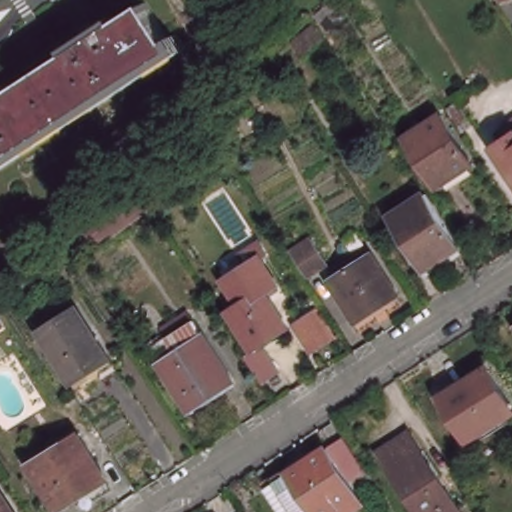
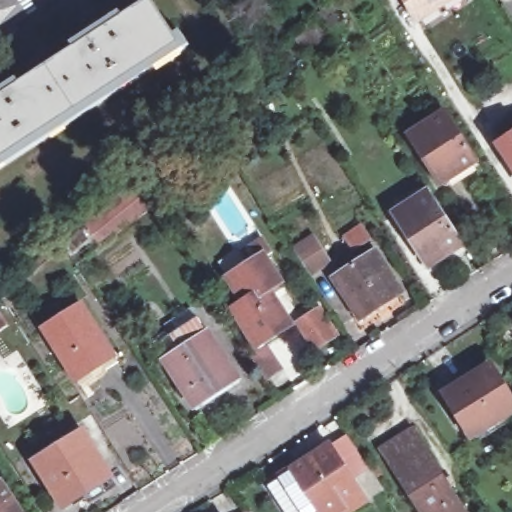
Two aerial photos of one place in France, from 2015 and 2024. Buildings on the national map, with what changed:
unchanged [(330,0),(337,0),(339,3),(324,13),(320,7),(330,0)]
new [(402,0),(456,0),(418,25),(402,0)]
unchanged [(16,96),(99,42),(93,34),(112,22),(117,30),(161,2),(190,47),(0,171),(0,95),(11,88),(16,96)]
unchanged [(295,38),(315,22),(325,34),(305,50),(295,38)]
unchanged [(227,114),(234,123),(220,135),(206,112),(230,91),(240,104),(227,114)]
unchanged [(416,141),(448,120),(481,169),(448,190),(416,141)]
unchanged [(163,152),(183,132),(192,141),(171,161),(163,152)]
unchanged [(497,144),(512,134),(512,166),(497,144)]
unchanged [(118,229),(113,223),(95,237),(85,224),(137,181),(133,174),(142,166),(155,186),(146,194),(152,204),(118,229)]
unchanged [(416,241),(396,210),(429,189),(467,248),(450,259),(433,269),(416,241)]
unchanged [(347,239),(362,229),(370,241),(355,250),(347,239)]
unchanged [(323,235),(345,267),(316,288),(293,257),(323,235)]
unchanged [(275,283),(263,291),(286,326),(253,348),(230,314),(240,307),(222,280),(256,256),(275,283)]
unchanged [(340,284),(381,257),(407,297),(365,324),(340,284)]
unchanged [(84,386),(80,379),(48,331),(85,308),(116,356),(121,362),(84,386)]
unchanged [(0,327),(0,311),(7,321),(0,327)]
unchanged [(293,326),(311,314),(328,341),(310,353),(293,326)]
unchanged [(185,401),(190,398),(163,356),(206,329),(245,389),(203,417),(196,407),(191,410),(185,401)]
unchanged [(477,439),(473,432),(447,390),(490,364),(512,400),(512,418),(477,439)]
unchanged [(35,461),(82,432),(109,475),(63,505),(35,461)]
unchanged [(398,472),(400,471),(387,451),(406,440),(417,433),(425,444),(468,512),(425,512),(398,472)]
unchanged [(358,512),(277,512),(265,494),(327,454),(340,445),(362,478),(348,487),(363,508),(358,512)]
unchanged [(19,512),(0,512),(0,494),(5,490),(19,512)]

